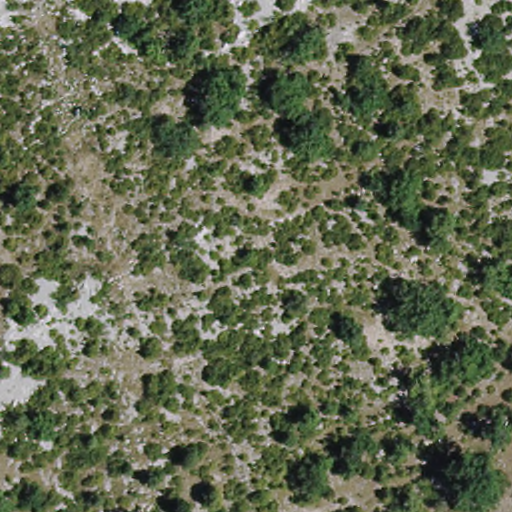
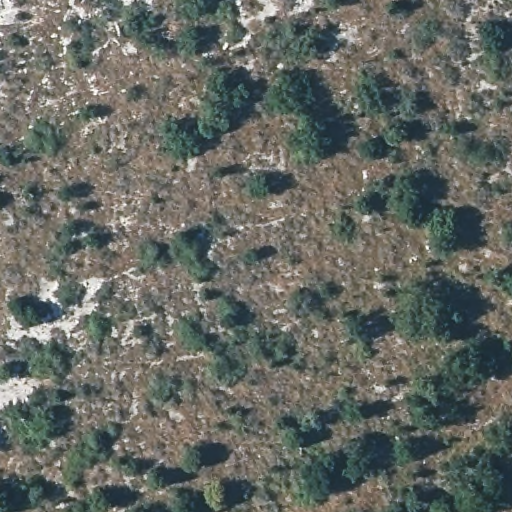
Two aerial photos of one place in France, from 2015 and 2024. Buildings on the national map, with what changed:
[]

